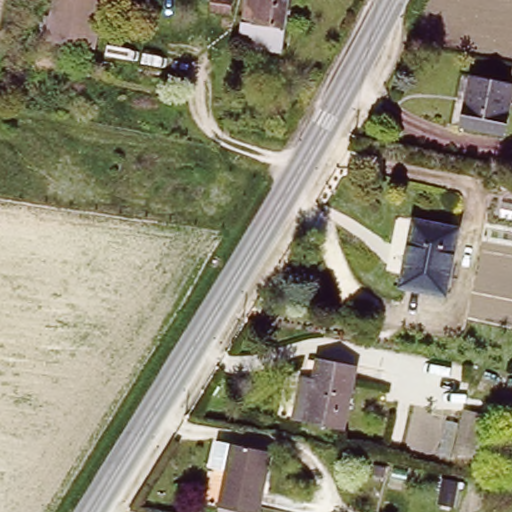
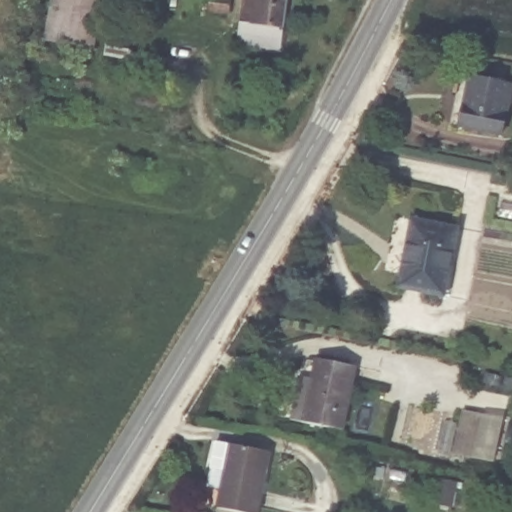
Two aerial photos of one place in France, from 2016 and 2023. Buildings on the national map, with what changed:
unchanged [(92,48),(50,42),(57,0),(97,0),(100,0),(92,48)]
unchanged [(233,13),(215,10),(217,0),(236,0),(233,13)]
unchanged [(282,55),(242,49),(249,0),(290,0),(282,55)]
unchanged [(467,126),(459,124),(469,75),(512,85),(512,131),(511,135),(467,126)]
unchanged [(447,291),(403,282),(416,218),(460,227),(447,291)]
unchanged [(346,431),(295,421),(304,378),(316,380),(320,358),(360,366),(346,431)]
unchanged [(259,512),(219,512),(231,447),(270,455),(259,512)]

